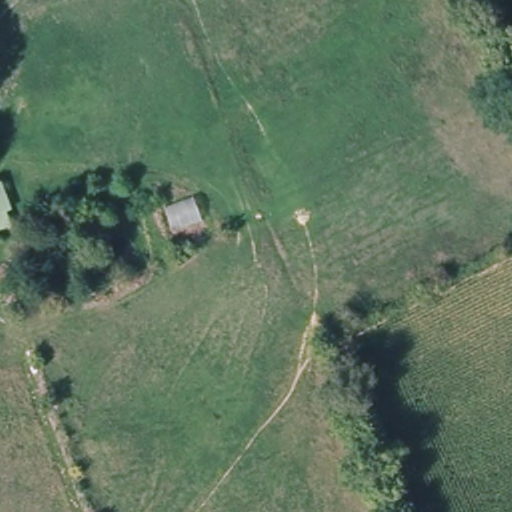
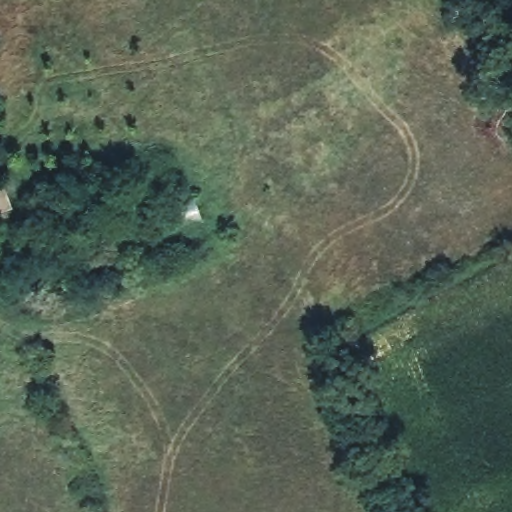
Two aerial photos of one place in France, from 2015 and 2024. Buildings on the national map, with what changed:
unchanged [(19,226),(0,233),(0,185),(2,184),(19,226)]
unchanged [(164,207),(195,196),(202,219),(173,231),(164,207)]

